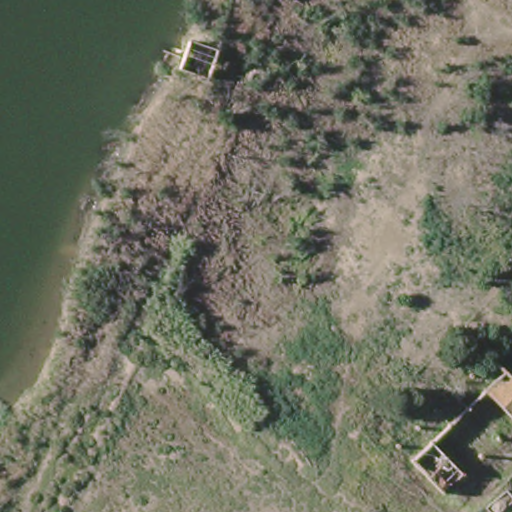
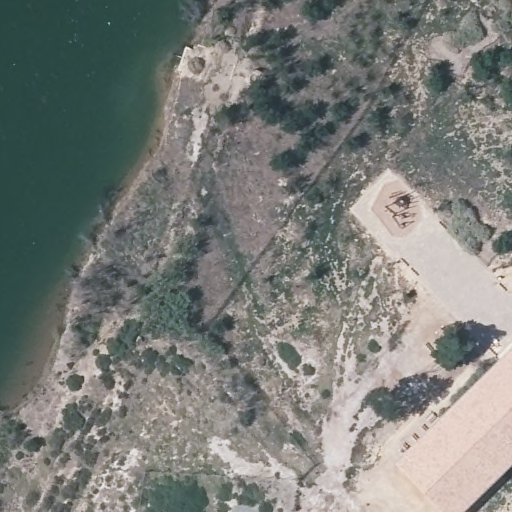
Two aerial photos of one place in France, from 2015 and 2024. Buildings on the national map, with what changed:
unchanged [(212,75),(186,67),(196,41),(218,48),(212,75)]
new [(446,512),(397,462),(512,349),(512,466),(466,512),(446,512)]

